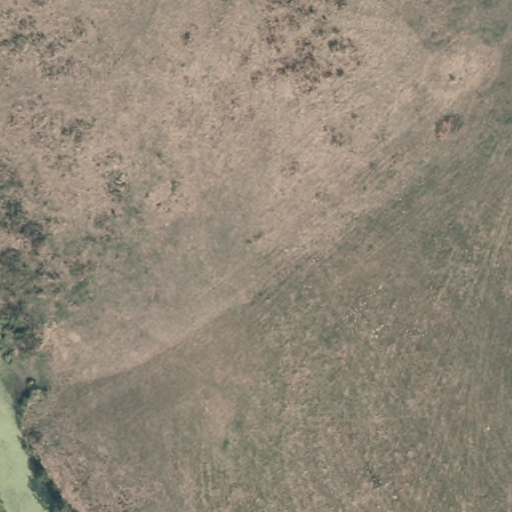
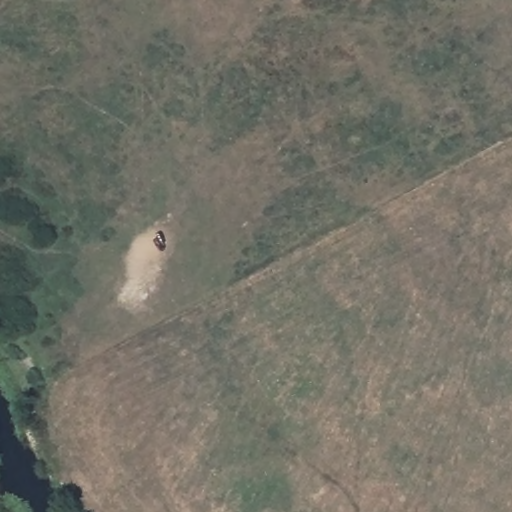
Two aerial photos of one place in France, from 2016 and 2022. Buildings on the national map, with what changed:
[]

